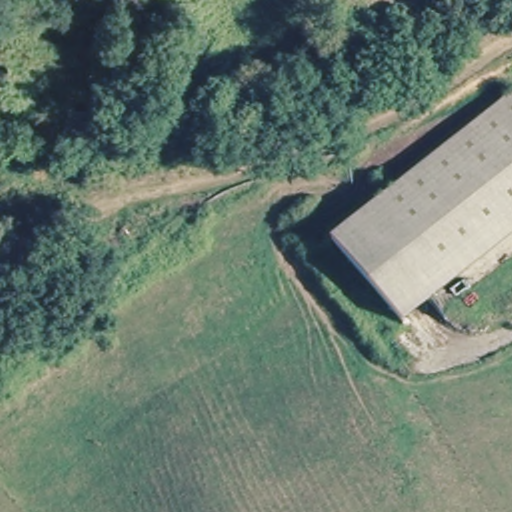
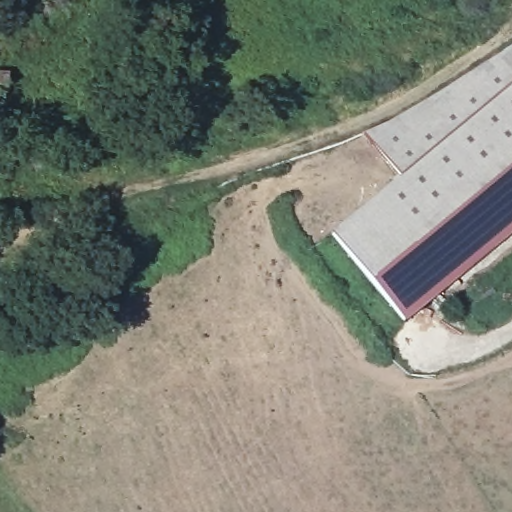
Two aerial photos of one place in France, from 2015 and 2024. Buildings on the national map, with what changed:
new [(402,180),(365,132),(388,121),(496,55),(512,45),(512,85),(510,83),(402,180)]
unchanged [(512,85),(512,208),(437,276),(376,204),(510,83),(512,85)]
unchanged [(437,276),(393,316),(331,246),(376,204),(437,276)]
unchanged [(437,276),(512,208),(512,235),(451,289),(437,276)]

